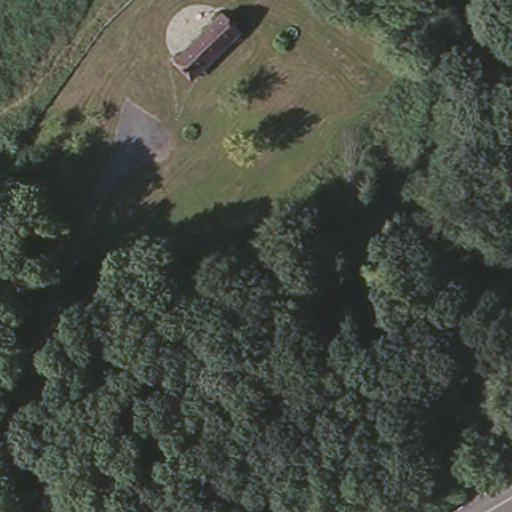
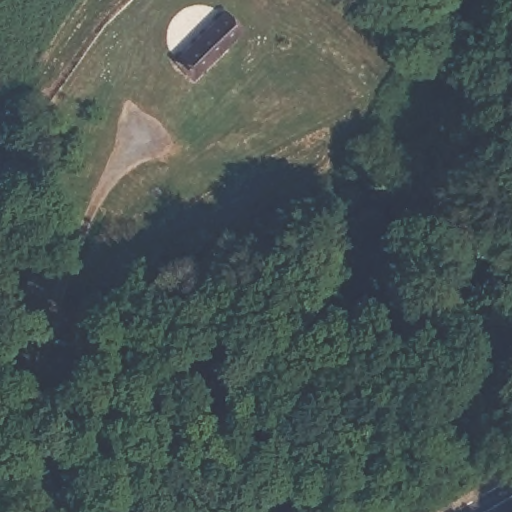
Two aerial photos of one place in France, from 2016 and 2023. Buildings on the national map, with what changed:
unchanged [(247,27),(202,78),(185,62),(229,11),(247,27)]

